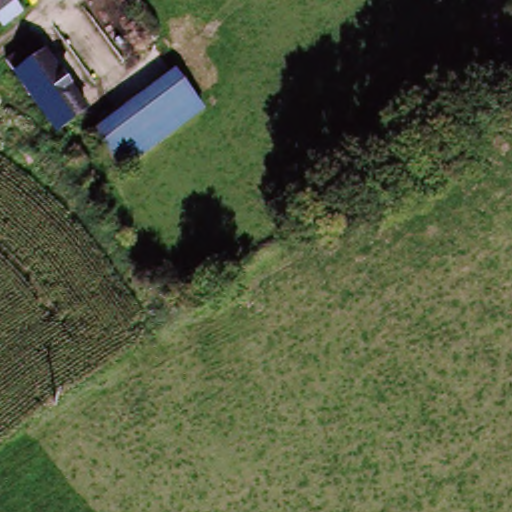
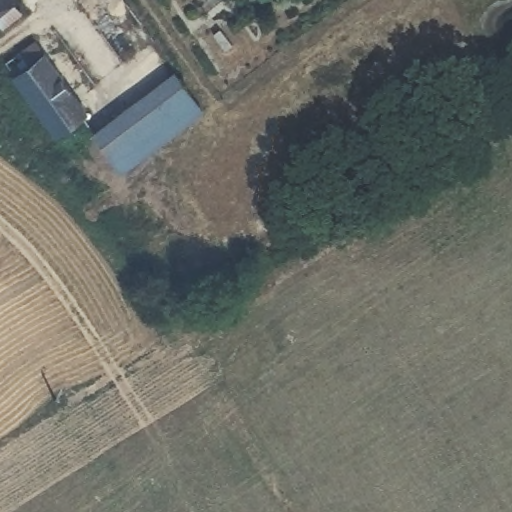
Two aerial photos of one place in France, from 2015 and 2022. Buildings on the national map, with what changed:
unchanged [(31,19),(5,38),(0,31),(0,0),(16,0),(31,19)]
unchanged [(58,127),(15,72),(4,59),(31,40),(42,54),(84,110),(58,127)]
unchanged [(169,76),(200,113),(124,175),(92,138),(169,76)]

